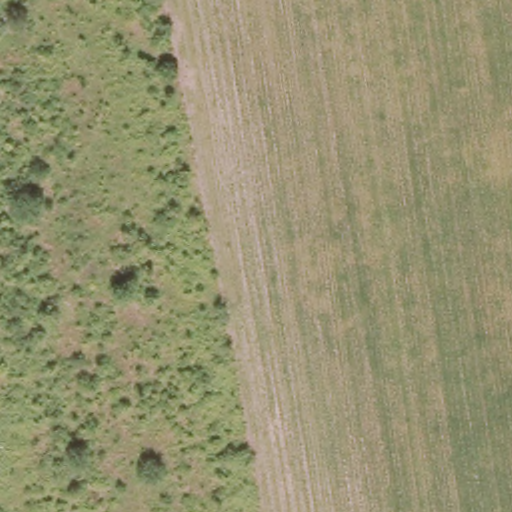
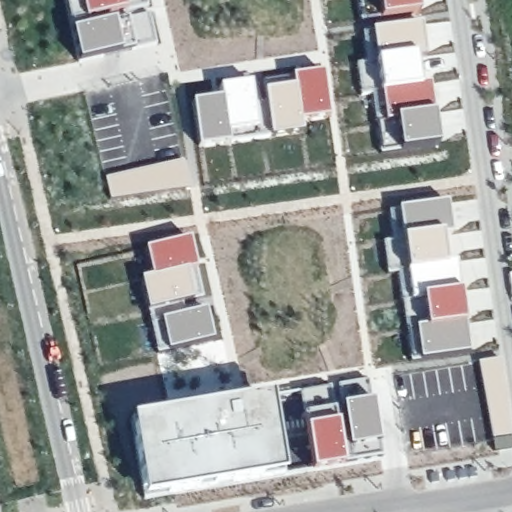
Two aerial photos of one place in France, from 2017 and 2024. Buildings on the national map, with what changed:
new [(63,0),(145,0),(146,7),(125,12),(127,20),(148,15),(155,45),(133,50),(119,54),(77,64),(63,0)]
new [(380,19),(361,22),(358,0),(416,0),(418,15),(380,19)]
new [(378,150),(381,149),(378,122),(375,122),(373,95),(361,95),(357,64),(366,63),(362,31),(372,30),(420,25),(424,59),(415,61),(418,89),(428,86),(432,115),(437,149),(400,152),(380,155),(378,150)]
new [(198,147),(192,102),(220,98),(219,86),(250,84),(253,107),(265,105),(264,91),(263,82),(290,77),(321,74),(327,120),(300,122),(302,134),(229,144),(198,147)]
new [(105,179),(182,162),(189,190),(110,201),(105,179)]
new [(445,267),(456,265),(468,354),(418,361),(413,325),(423,323),(420,298),(409,300),(397,210),(446,203),(450,234),(440,235),(445,267)]
new [(167,354),(156,356),(146,312),(140,280),(150,278),(144,250),(188,240),(195,272),(202,300),(192,303),(178,306),(181,317),(205,311),(212,342),(167,354)]
new [(478,363),(499,360),(511,436),(492,440),(478,363)]
new [(305,430),(303,415),(298,393),(330,388),(333,410),(340,410),(336,387),(366,383),(370,406),(377,446),(380,461),(342,468),(312,473),(305,430)]
new [(130,421),(270,399),(282,478),(143,500),(130,421)]

